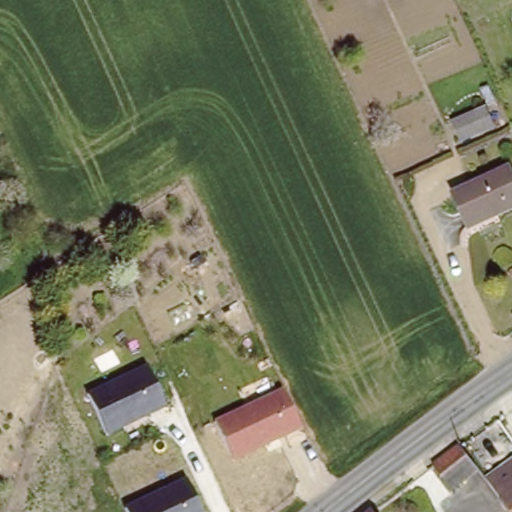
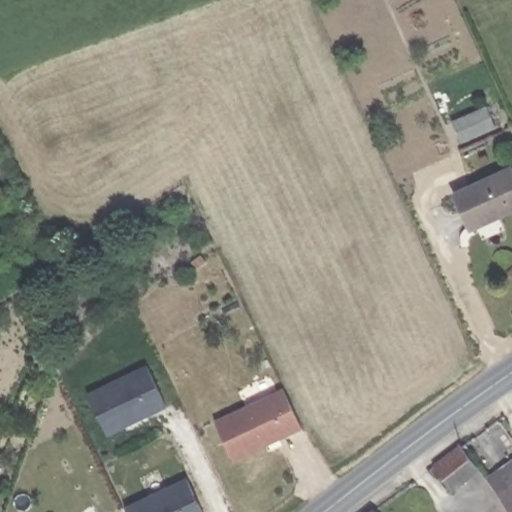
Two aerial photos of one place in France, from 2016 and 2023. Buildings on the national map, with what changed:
unchanged [(485,115),(448,132),(438,112),(476,94),(485,115)]
unchanged [(512,207),(465,229),(450,197),(509,169),(512,175),(512,207)]
unchanged [(147,364),(166,407),(108,435),(87,392),(147,364)]
unchanged [(283,388),(300,429),(233,459),(213,420),(283,388)]
unchanged [(450,489),(430,464),(433,461),(455,445),(472,467),(475,470),(450,489)]
unchanged [(512,460),(512,512),(507,512),(484,482),(512,460)]
unchanged [(202,512),(126,512),(122,505),(185,475),(202,512)]

